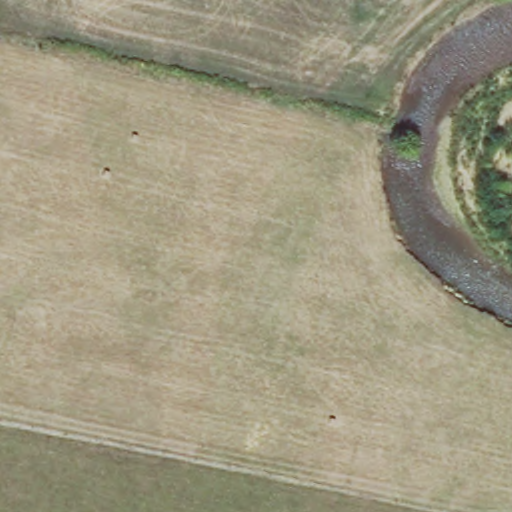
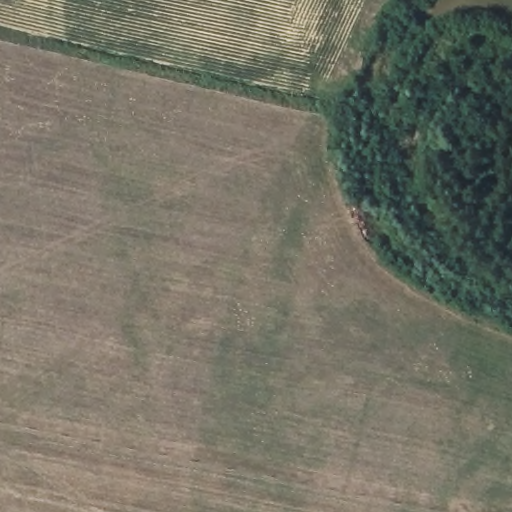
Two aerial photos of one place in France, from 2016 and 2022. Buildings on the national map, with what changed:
[]

